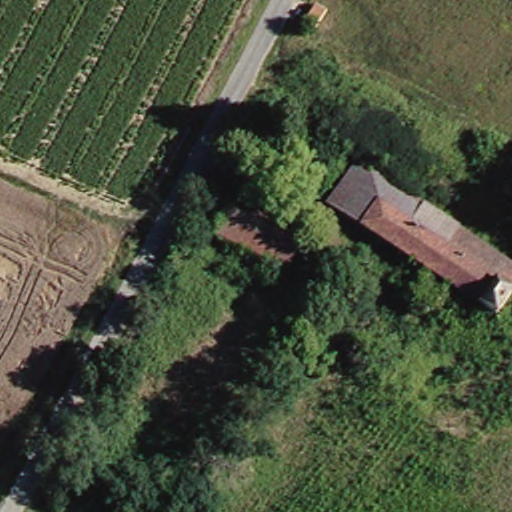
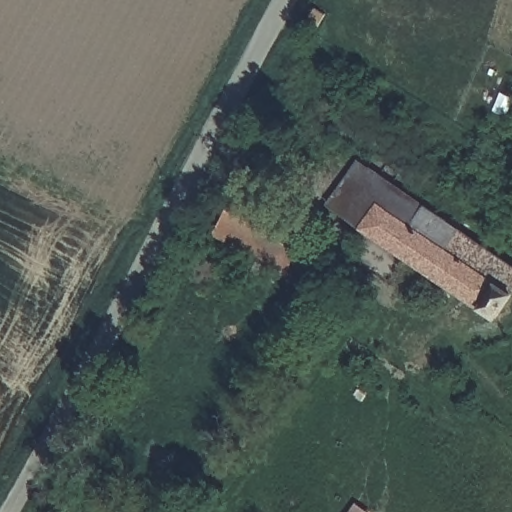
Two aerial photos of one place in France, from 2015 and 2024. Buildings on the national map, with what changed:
unchanged [(343,209),(372,166),(508,256),(512,259),(512,315),(509,320),(343,209)]
unchanged [(245,197),(316,238),(296,273),(225,232),(245,197)]

